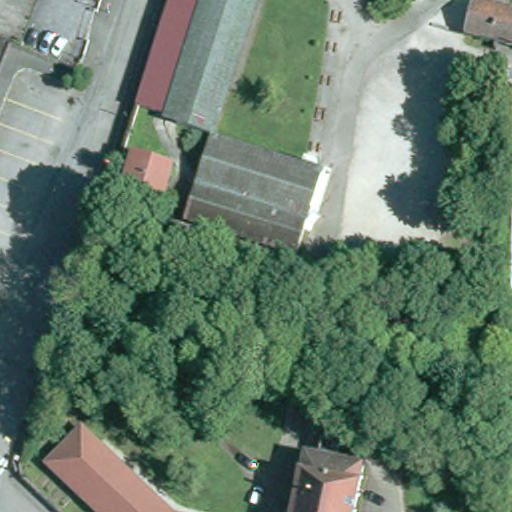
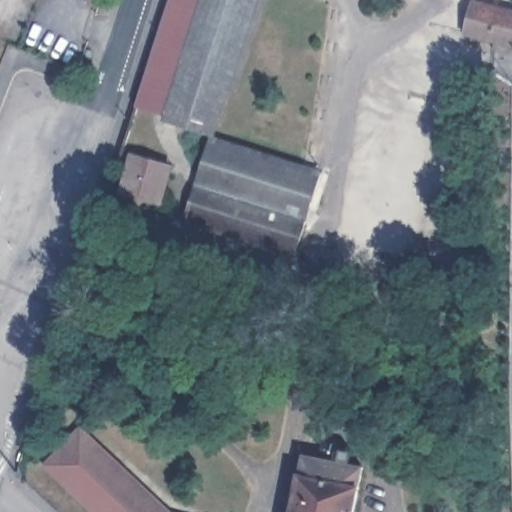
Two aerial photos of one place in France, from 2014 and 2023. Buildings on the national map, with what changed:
unchanged [(163,118),(163,113),(133,102),(166,0),(255,0),(211,133),(208,132),(163,118)]
unchanged [(462,32),(464,19),(474,21),(479,0),(512,8),(512,44),(462,32)]
unchanged [(319,168),(291,253),(180,216),(208,132),(211,133),(319,168)]
unchanged [(176,169),(166,205),(127,194),(138,158),(176,169)]
unchanged [(78,425),(173,512),(92,512),(40,465),(78,425)]
unchanged [(368,467),(358,512),(296,512),(309,453),(368,467)]

